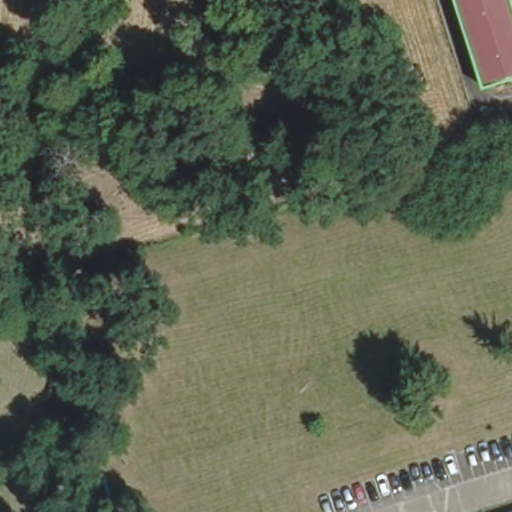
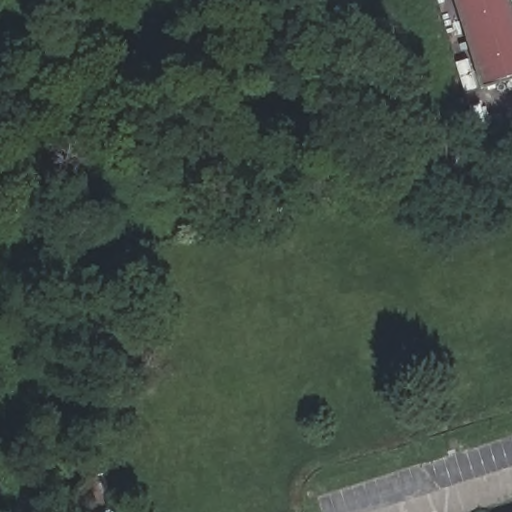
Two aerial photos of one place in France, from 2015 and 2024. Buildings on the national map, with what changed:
unchanged [(461,0),(512,0),(512,80),(488,86),(461,0)]
unchanged [(114,512),(87,512),(79,483),(104,475),(115,511),(114,512)]

